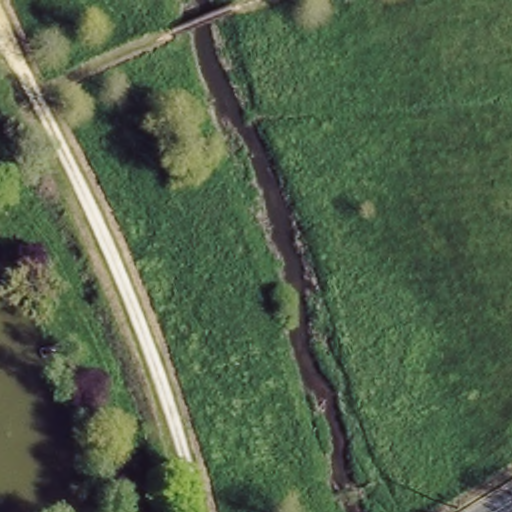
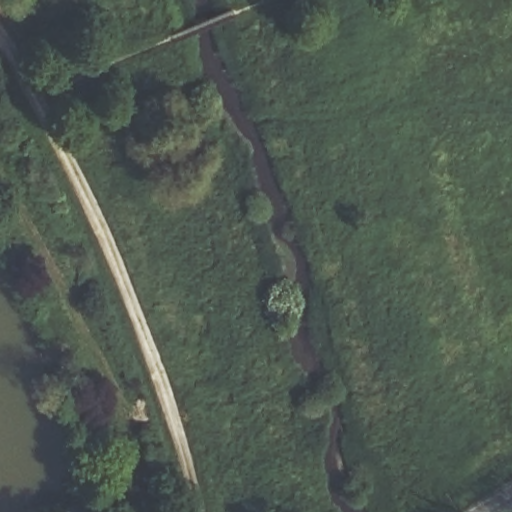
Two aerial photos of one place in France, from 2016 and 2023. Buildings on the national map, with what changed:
[]

